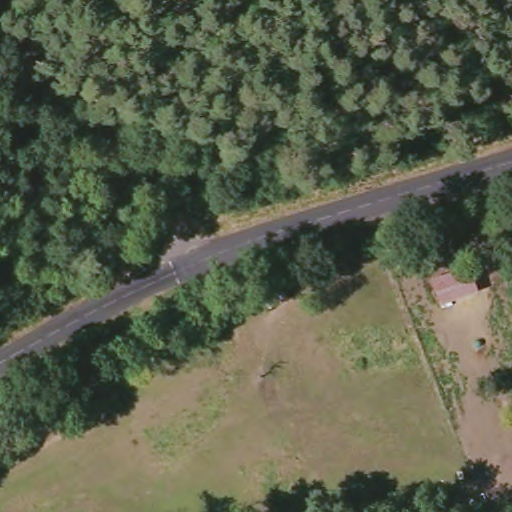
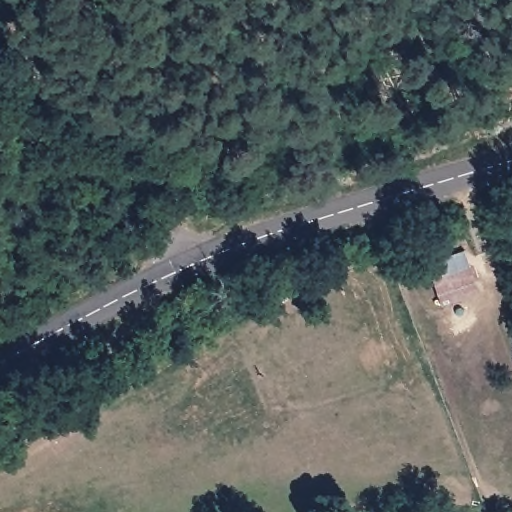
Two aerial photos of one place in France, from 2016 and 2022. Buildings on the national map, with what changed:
unchanged [(430,277),(472,266),(482,295),(439,304),(430,277)]

